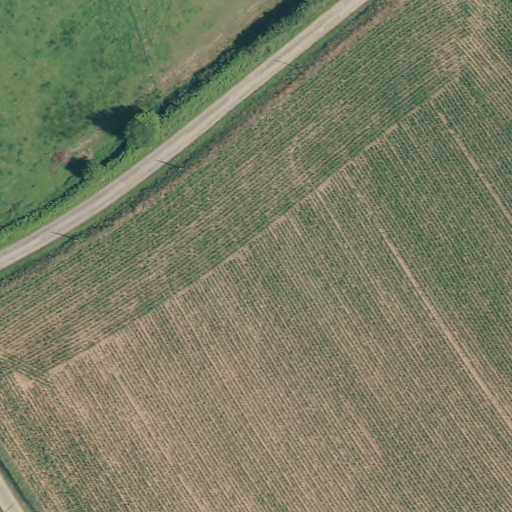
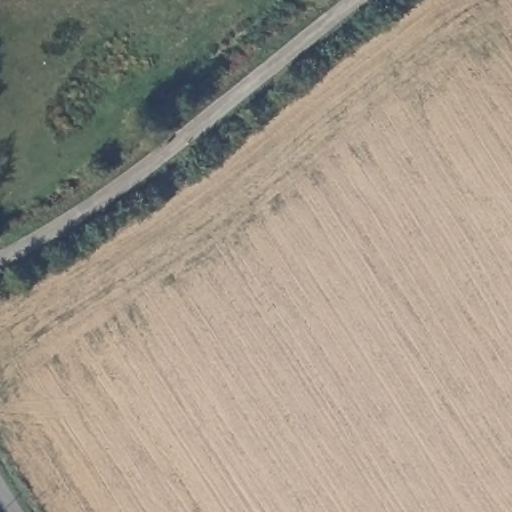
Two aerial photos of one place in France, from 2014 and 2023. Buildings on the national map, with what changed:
[]

